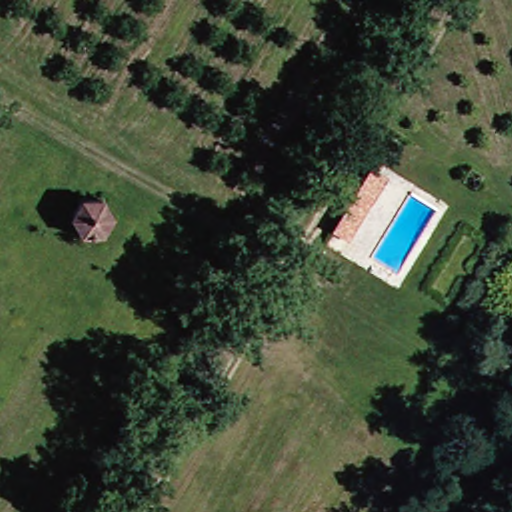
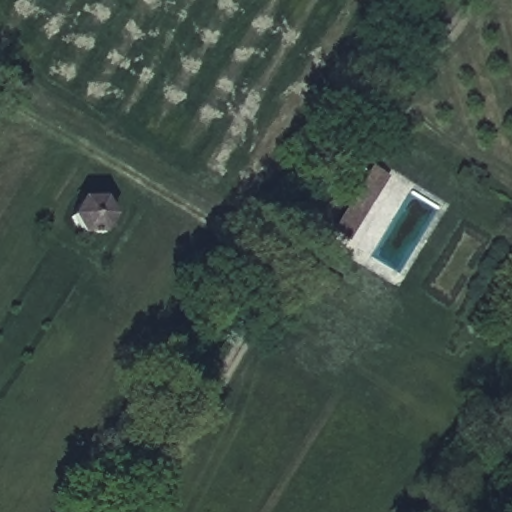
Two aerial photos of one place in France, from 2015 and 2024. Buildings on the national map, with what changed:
unchanged [(346,237),(330,226),(352,190),(366,166),(383,179),(368,202),(346,237)]
unchanged [(101,215),(91,236),(70,237),(61,220),(70,200),(92,199),(101,215)]

